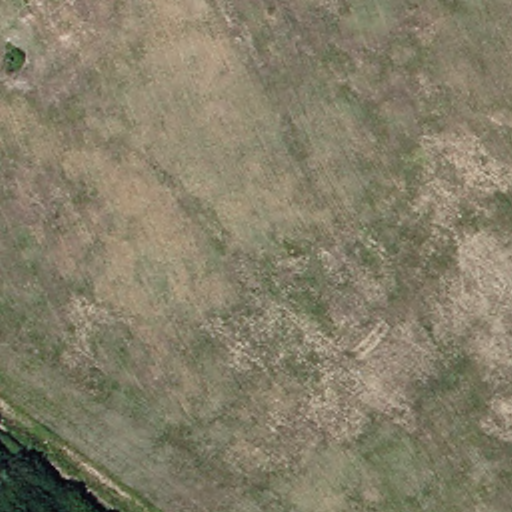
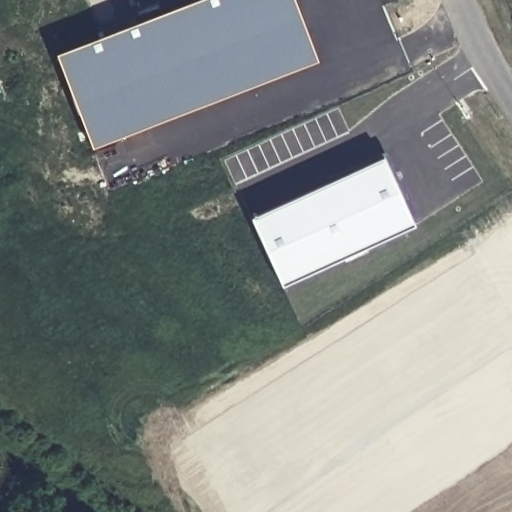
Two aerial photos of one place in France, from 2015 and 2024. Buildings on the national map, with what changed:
new [(93,150),(56,55),(198,0),(295,0),(319,63),(93,150)]
new [(383,160),(413,226),(283,285),(253,219),(383,160)]

